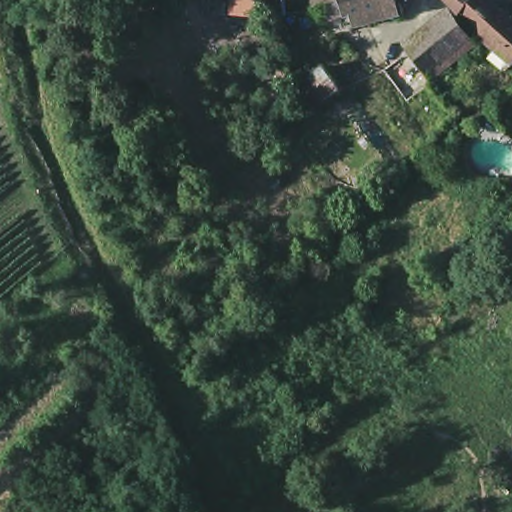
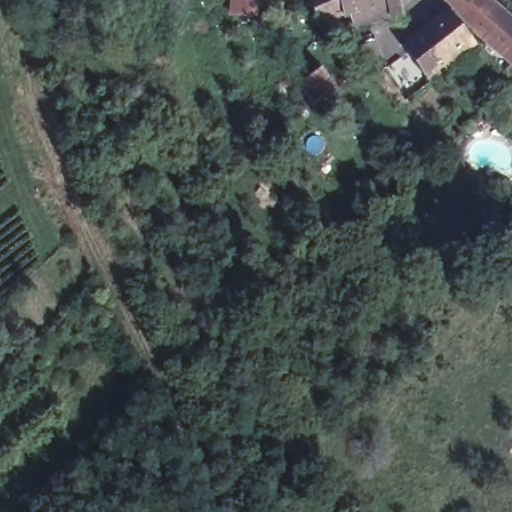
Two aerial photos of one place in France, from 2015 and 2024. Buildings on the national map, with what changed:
unchanged [(284,13),(271,15),(271,13),(266,13),(266,7),(265,0),(282,0),(284,13)]
unchanged [(348,7),(347,4),(317,16),(315,4),(313,0),(401,0),(402,5),(399,10),(352,20),(351,14),(342,17),(340,10),(348,7)]
unchanged [(488,42),(451,0),(487,0),(512,18),(488,42)]
unchanged [(400,68),(414,58),(406,49),(455,13),(481,46),(432,83),(431,81),(417,92),(400,68)]
unchanged [(488,42),(512,18),(512,67),(488,42)]
unchanged [(337,86),(315,103),(300,81),(321,65),(337,86)]

